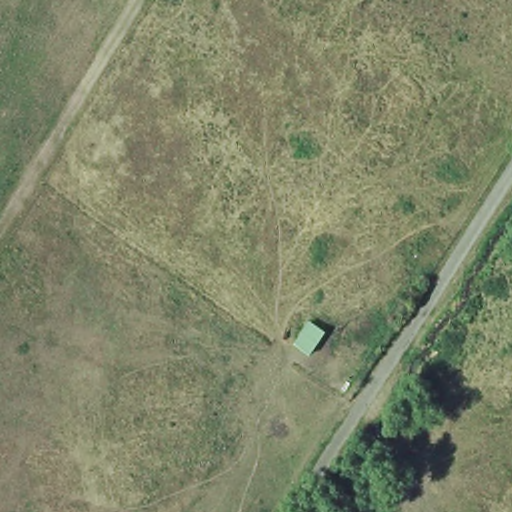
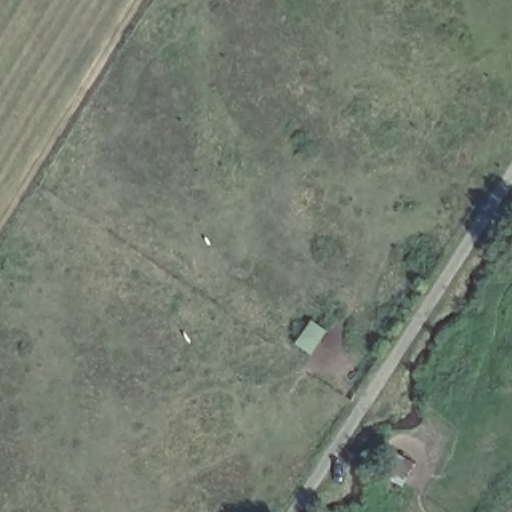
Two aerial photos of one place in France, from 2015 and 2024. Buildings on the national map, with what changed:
unchanged [(305,357),(295,350),(310,324),(324,333),(305,357)]

